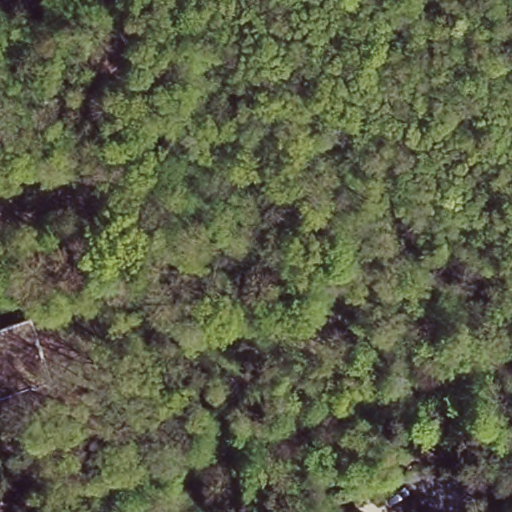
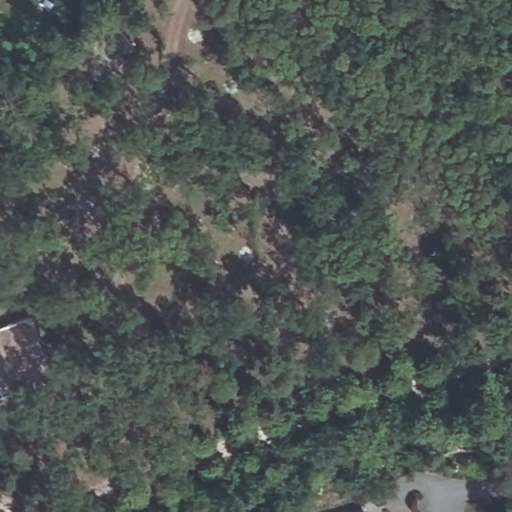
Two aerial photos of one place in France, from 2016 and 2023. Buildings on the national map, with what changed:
unchanged [(112,21),(128,44),(88,74),(71,51),(112,21)]
unchanged [(47,379),(0,394),(0,326),(27,318),(47,379)]

